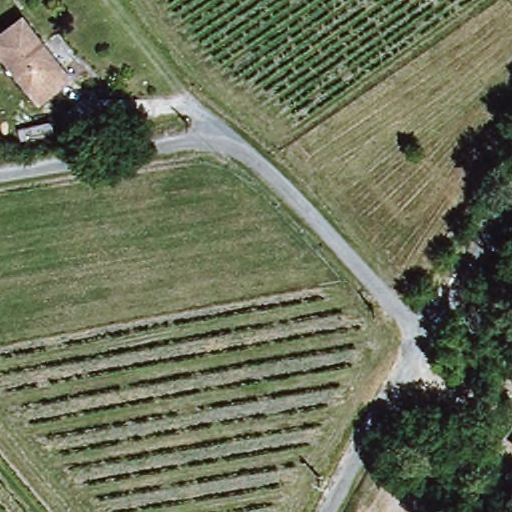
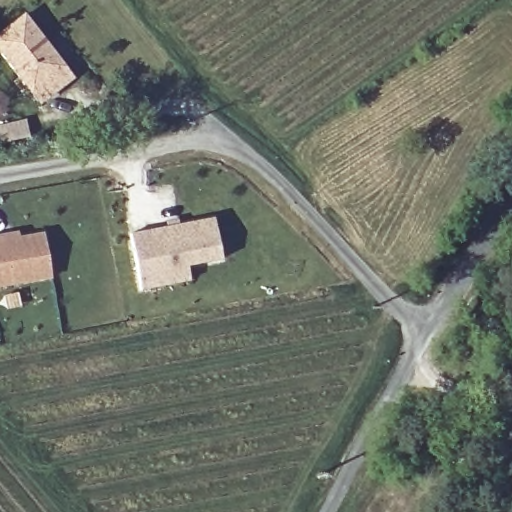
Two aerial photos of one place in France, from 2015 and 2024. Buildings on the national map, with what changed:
unchanged [(71,73),(39,98),(0,52),(0,33),(23,15),(71,73)]
new [(216,218),(223,258),(164,270),(167,282),(140,287),(130,235),(216,218)]
new [(0,287),(0,233),(19,229),(20,235),(42,231),(51,277),(0,287)]

